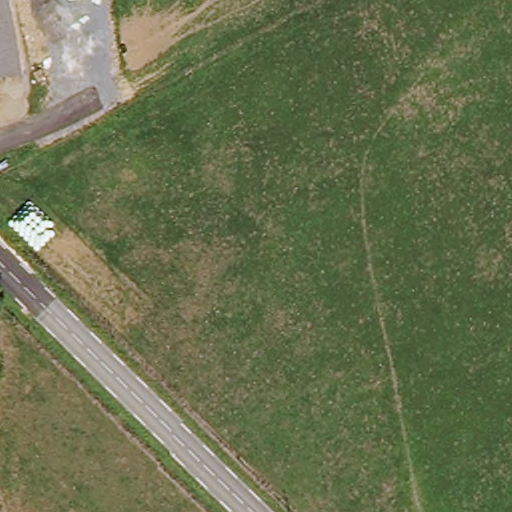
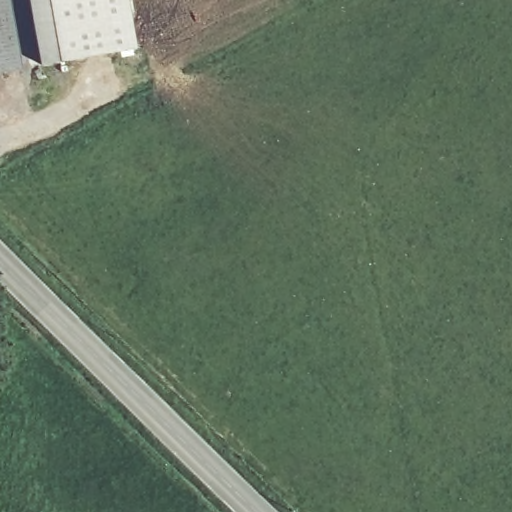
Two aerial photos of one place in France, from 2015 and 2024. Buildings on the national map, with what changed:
unchanged [(0,70),(0,0),(8,0),(19,67),(0,70)]
new [(134,50),(39,70),(26,0),(125,0),(134,50)]

